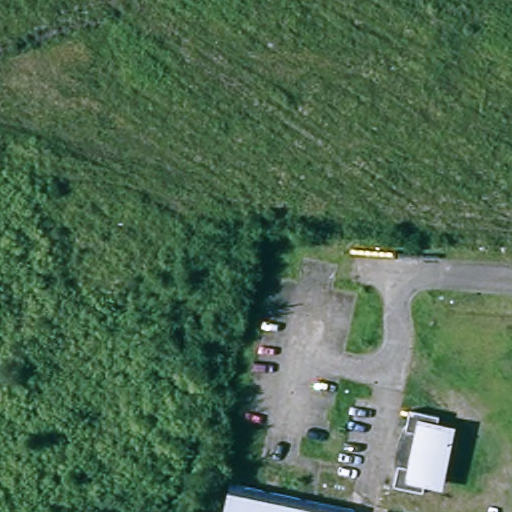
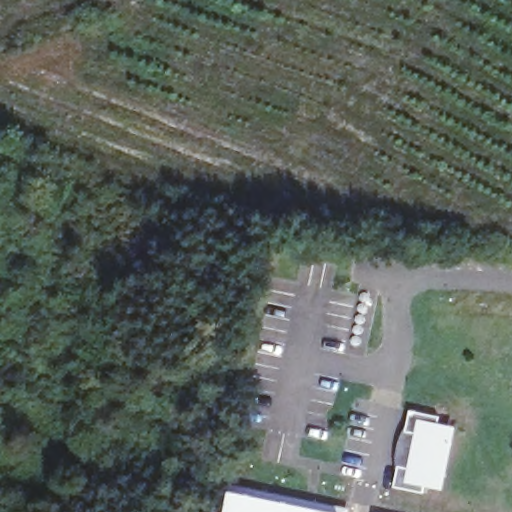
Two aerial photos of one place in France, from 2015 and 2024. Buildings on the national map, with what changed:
unchanged [(442,412),(440,429),(459,435),(446,479),(428,475),(422,494),(392,484),(413,404),(442,412)]
unchanged [(341,512),(227,512),(235,482),(341,512)]
unchanged [(385,512),(383,512),(383,511),(385,512)]

